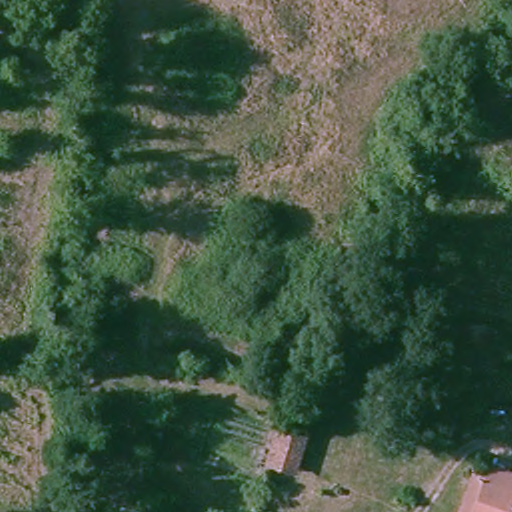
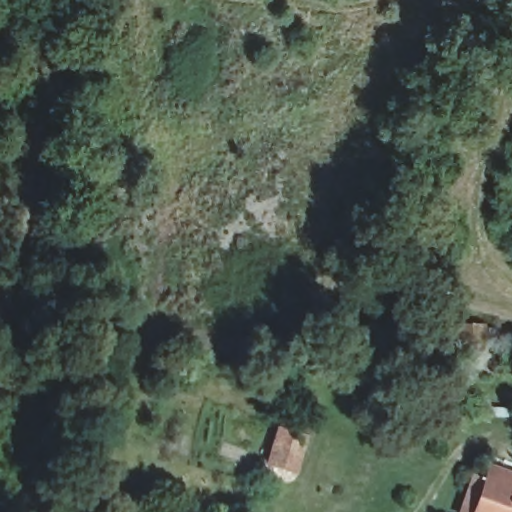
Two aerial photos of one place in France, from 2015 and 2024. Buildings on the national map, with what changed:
unchanged [(290,436),(307,437),(303,459),(271,459),(274,436),(290,436)]
unchanged [(469,512),(483,473),(508,483),(498,512),(469,512)]
unchanged [(512,485),(512,512),(498,512),(508,483),(512,485)]

